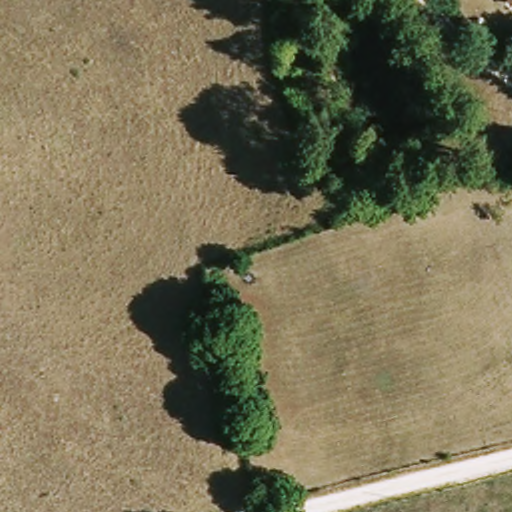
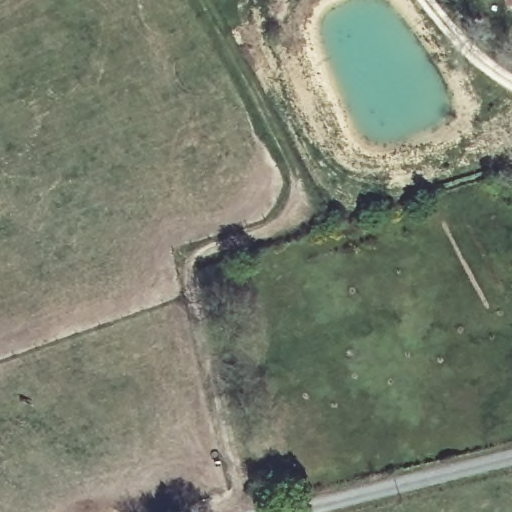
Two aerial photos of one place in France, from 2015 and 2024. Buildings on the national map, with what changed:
unchanged [(512,6),(511,6),(508,0),(512,0),(512,6)]

